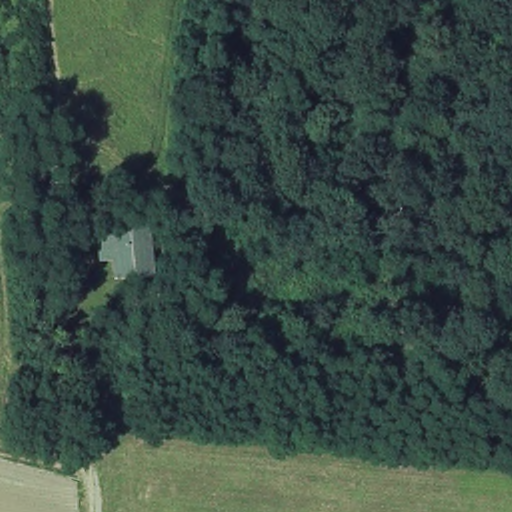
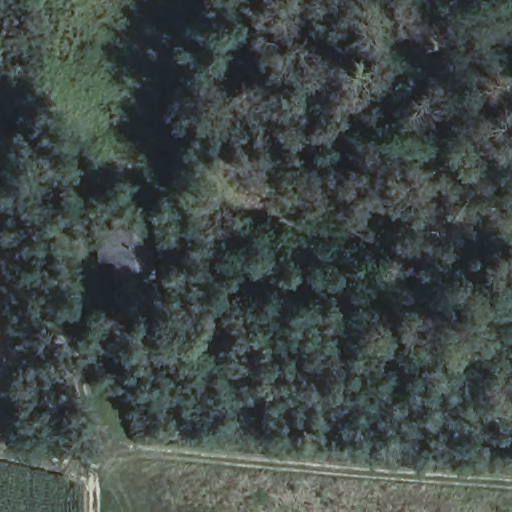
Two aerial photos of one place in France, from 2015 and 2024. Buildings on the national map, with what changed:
unchanged [(145,279),(89,286),(84,234),(140,226),(145,279)]

